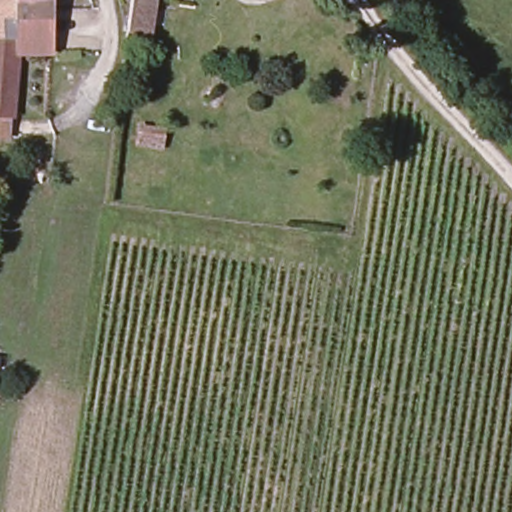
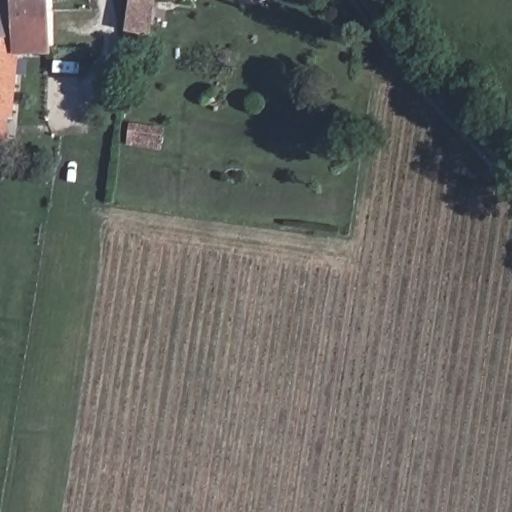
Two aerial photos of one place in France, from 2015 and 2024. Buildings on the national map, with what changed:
unchanged [(0,42),(0,0),(11,0),(10,42),(0,42)]
unchanged [(11,55),(10,42),(11,0),(47,0),(46,56),(11,55)]
unchanged [(132,0),(157,0),(146,45),(122,39),(132,0)]
unchanged [(11,55),(9,123),(1,123),(0,133),(0,42),(10,42),(11,55)]
unchanged [(322,108),(325,92),(344,96),(341,111),(322,108)]
unchanged [(132,150),(136,130),(161,135),(158,154),(132,150)]

